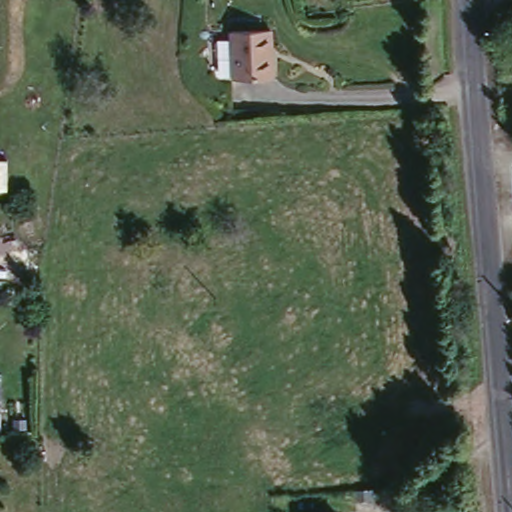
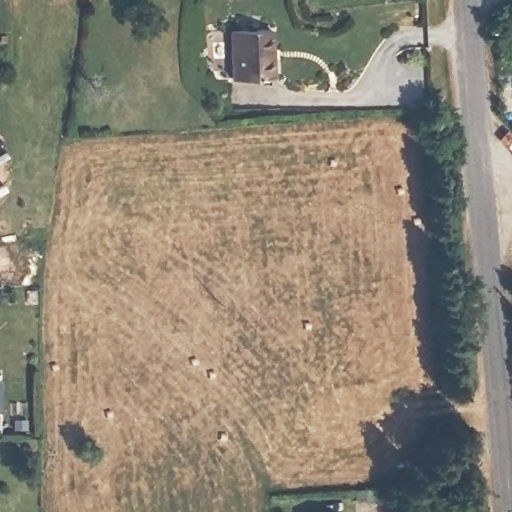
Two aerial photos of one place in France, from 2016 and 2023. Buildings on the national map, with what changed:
unchanged [(229,29),(268,27),(269,82),(228,83),(229,29)]

